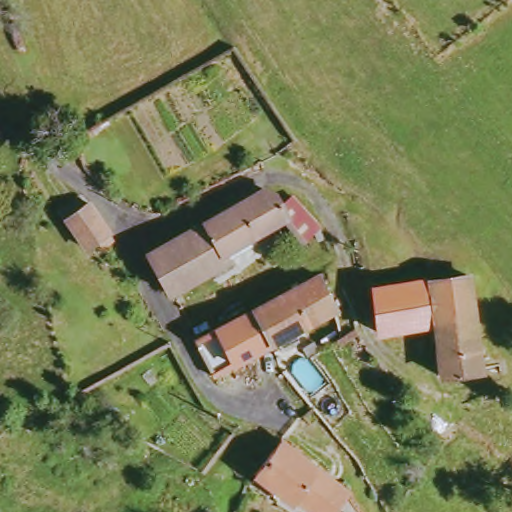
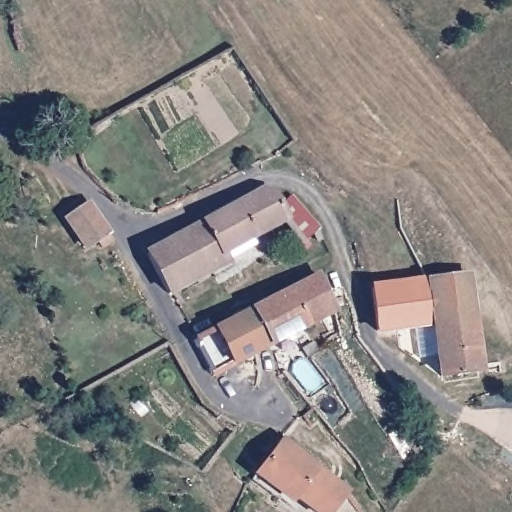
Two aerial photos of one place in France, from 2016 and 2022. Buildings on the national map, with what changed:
unchanged [(266,195),(281,199),(290,212),(299,207),(324,232),(309,249),(292,230),(231,262),(233,271),(175,302),(157,257),(266,195)]
unchanged [(114,238),(89,251),(70,223),(93,209),(114,238)]
unchanged [(446,378),(439,327),(384,333),(378,290),(474,276),(488,377),(446,378)]
unchanged [(310,330),(291,292),(319,277),(339,315),(310,330)]
unchanged [(268,351),(213,377),(199,342),(291,292),(310,330),(268,351)]
unchanged [(343,512),(319,512),(303,499),(294,507),(256,477),(285,442),(353,502),(343,512)]

